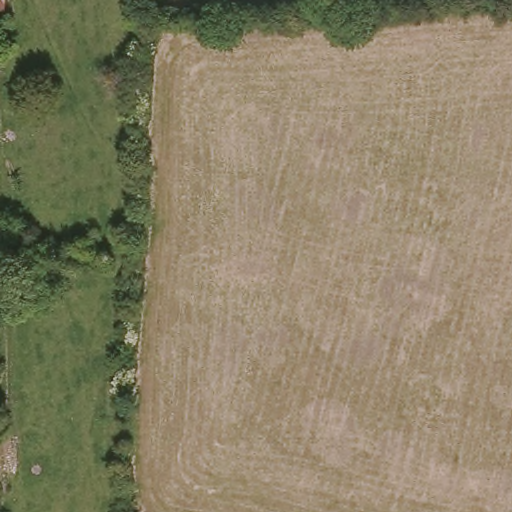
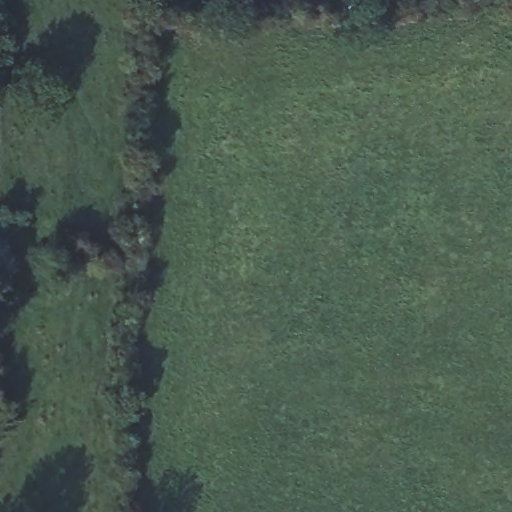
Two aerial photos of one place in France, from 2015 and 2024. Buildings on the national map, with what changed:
[]

